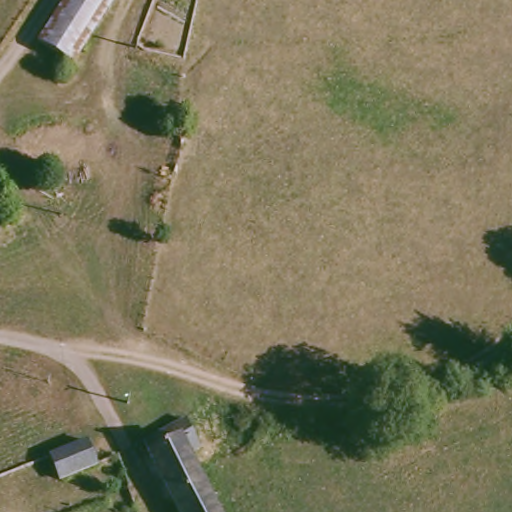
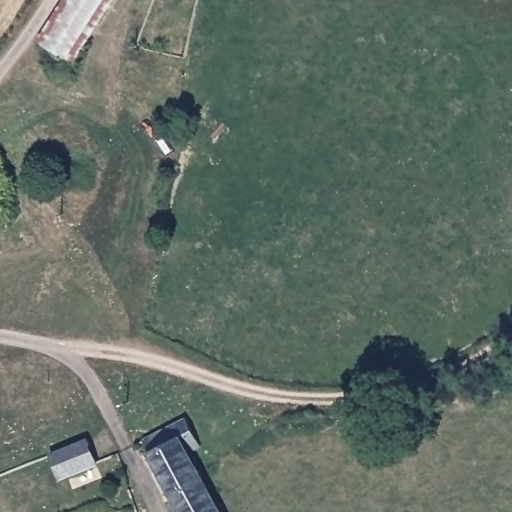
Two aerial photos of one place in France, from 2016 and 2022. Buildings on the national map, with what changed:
unchanged [(85,31),(63,63),(33,39),(58,0),(105,0),(85,31)]
unchanged [(186,457),(212,512),(174,512),(140,444),(183,420),(192,439),(195,447),(186,457)]
unchanged [(46,454),(85,439),(94,461),(55,477),(46,454)]

